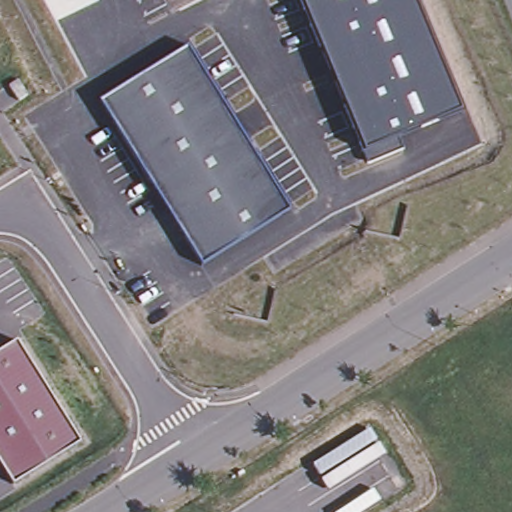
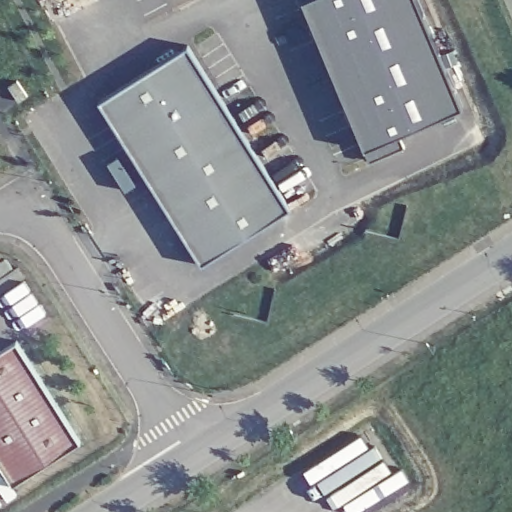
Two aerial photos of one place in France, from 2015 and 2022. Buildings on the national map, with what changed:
unchanged [(398,135),(404,147),(369,162),(364,149),(303,0),(416,0),(460,109),(398,135)]
unchanged [(290,209),(202,264),(100,101),(188,46),(290,209)]
unchanged [(18,81),(28,96),(19,101),(9,86),(18,81)]
unchanged [(0,350),(22,336),(86,437),(18,480),(16,476),(7,482),(0,470),(0,350)]

